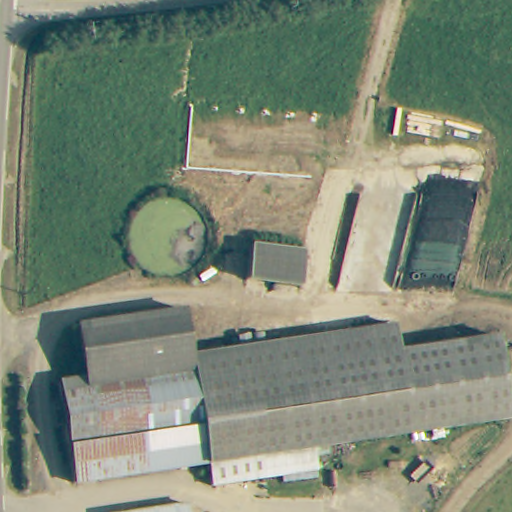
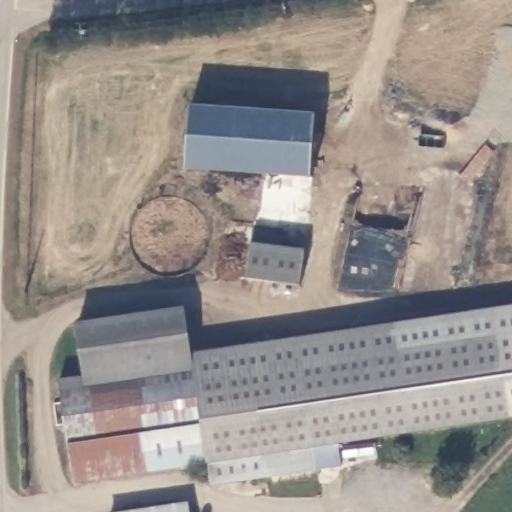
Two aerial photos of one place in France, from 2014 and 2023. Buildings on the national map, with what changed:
new [(312,179),(187,169),(192,107),(316,116),(312,179)]
unchanged [(302,250),(297,285),(243,278),(247,243),(302,250)]
new [(512,305),(512,416),(507,417),(496,335),(397,349),(392,324),(512,305)]
unchanged [(180,308),(189,354),(363,328),(392,324),(397,349),(496,335),(507,417),(338,442),(310,446),(205,461),(70,481),(59,401),(85,397),(74,323),(180,308)]
unchanged [(278,480),(277,474),(207,484),(205,461),(310,446),(313,469),(313,476),(278,480)]
unchanged [(190,512),(153,512),(189,507),(190,512)]

